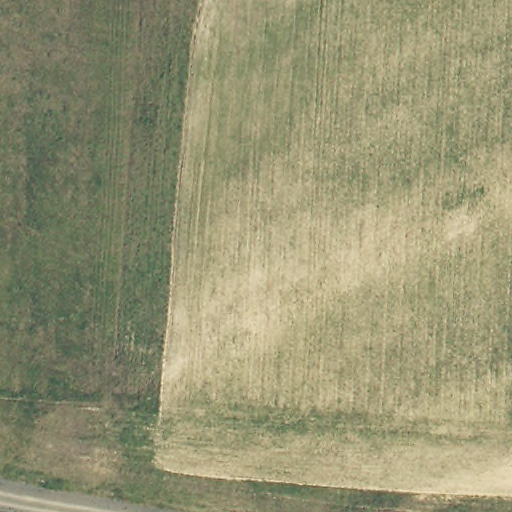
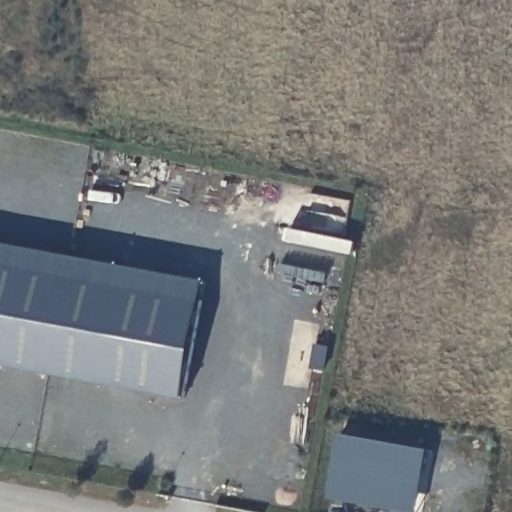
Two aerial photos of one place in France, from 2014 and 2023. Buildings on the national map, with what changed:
new [(0,364),(0,242),(204,281),(185,398),(0,364)]
new [(417,512),(414,512),(329,497),(340,433),(426,448),(417,512)]

